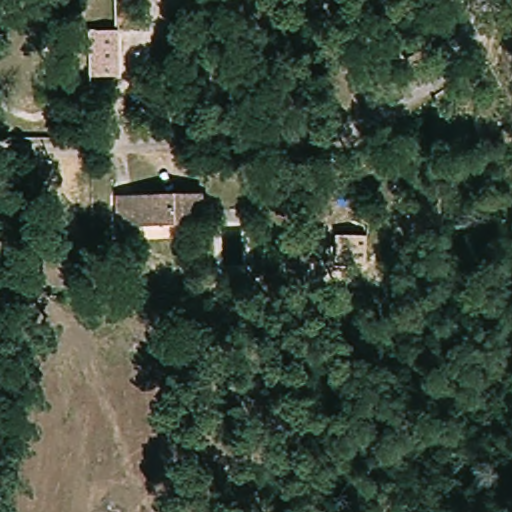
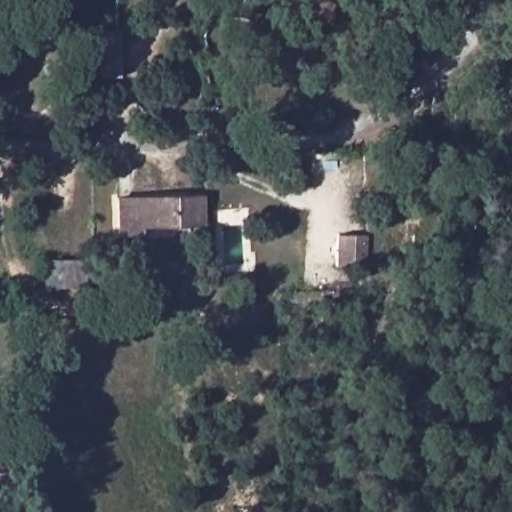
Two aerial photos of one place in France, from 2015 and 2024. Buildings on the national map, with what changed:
unchanged [(115,31),(115,75),(89,76),(90,33),(115,31)]
unchanged [(203,225),(152,227),(152,234),(125,234),(123,202),(203,199),(203,225)]
unchanged [(365,267),(335,268),(337,234),(365,236),(365,267)]
unchanged [(318,237),(318,268),(306,267),(306,235),(318,237)]

